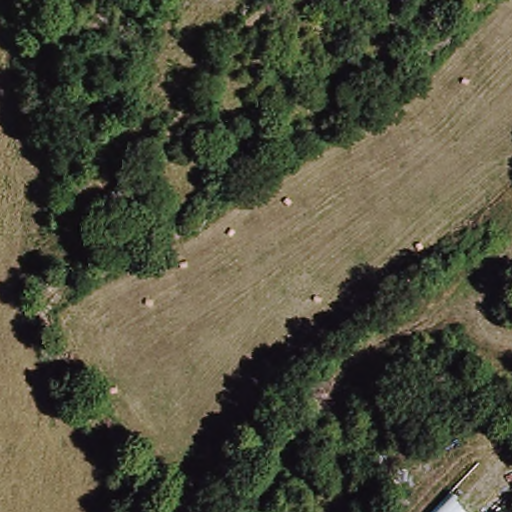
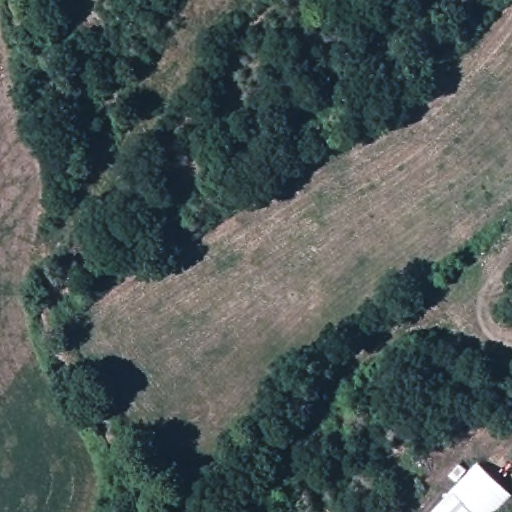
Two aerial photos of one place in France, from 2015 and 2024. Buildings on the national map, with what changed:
new [(472,512),(454,495),(481,466),(511,496),(494,512),(472,512)]
unchanged [(472,512),(437,512),(454,495),(472,512)]

